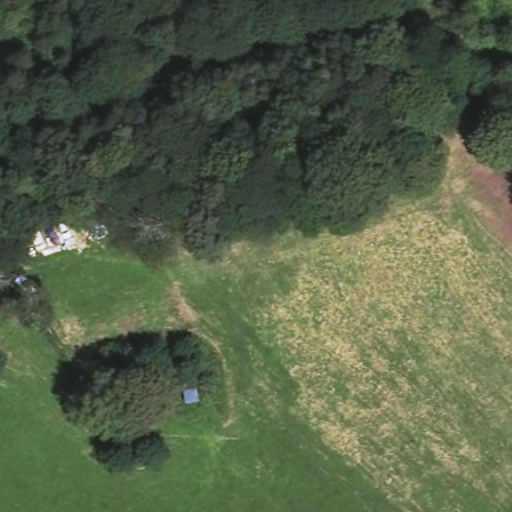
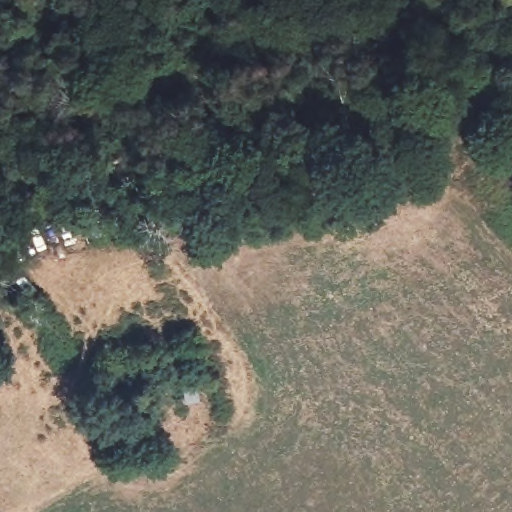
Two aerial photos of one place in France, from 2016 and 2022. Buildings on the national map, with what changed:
unchanged [(192,343),(201,367),(184,372),(176,347),(192,343)]

